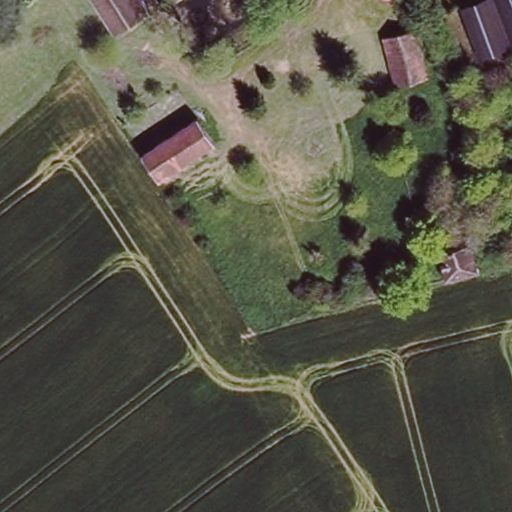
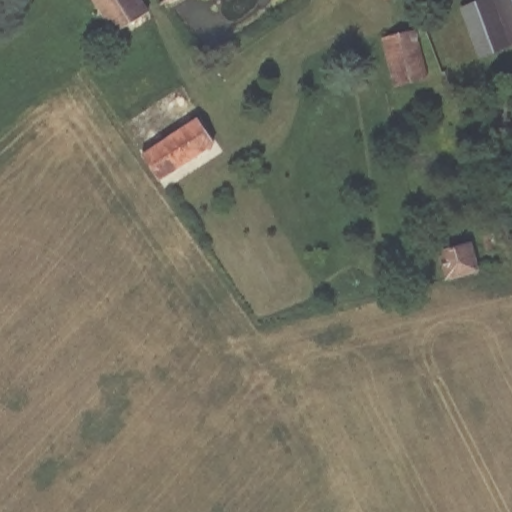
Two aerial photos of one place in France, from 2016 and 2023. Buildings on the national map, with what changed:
unchanged [(112,34),(91,0),(140,0),(147,11),(112,34)]
unchanged [(395,8),(390,6),(388,4),(387,0),(388,0),(401,0),(399,5),(395,8)]
unchanged [(512,0),(512,45),(482,56),(465,10),(492,0),(512,0)]
unchanged [(420,30),(431,75),(399,84),(388,39),(420,30)]
unchanged [(198,116),(215,142),(158,179),(141,154),(198,116)]
unchanged [(470,245),(478,275),(446,283),(440,254),(470,245)]

